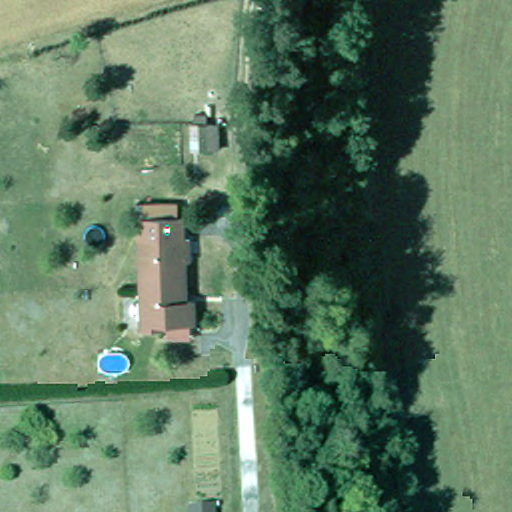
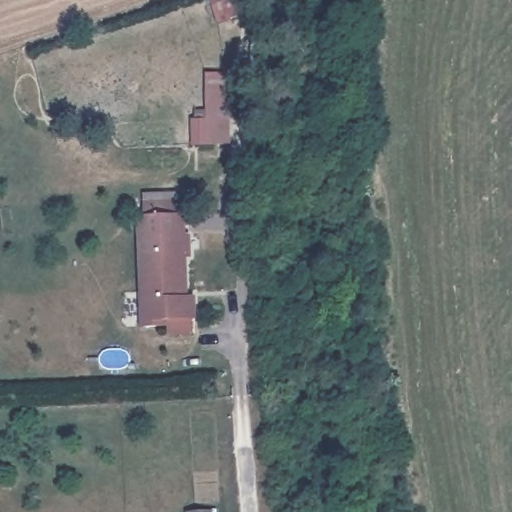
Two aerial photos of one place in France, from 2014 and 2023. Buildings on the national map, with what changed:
new [(206,89),(230,88),(232,145),(209,145),(193,145),(192,119),(208,118),(206,89)]
unchanged [(177,222),(177,242),(182,242),(182,265),(180,265),(180,300),(188,300),(188,315),(158,315),(158,322),(137,322),(134,222),(177,222)]
unchanged [(204,506),(204,512),(183,512),(182,507),(204,506)]

